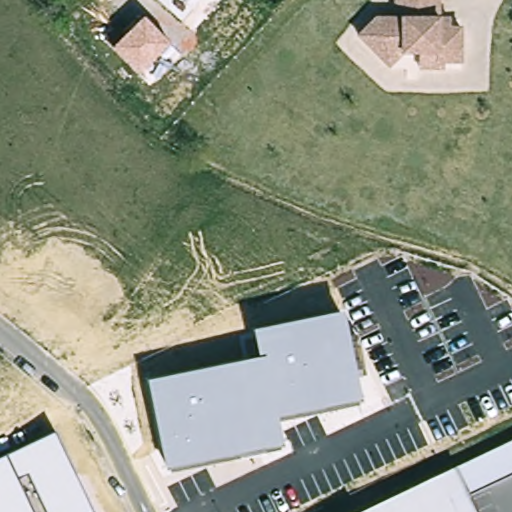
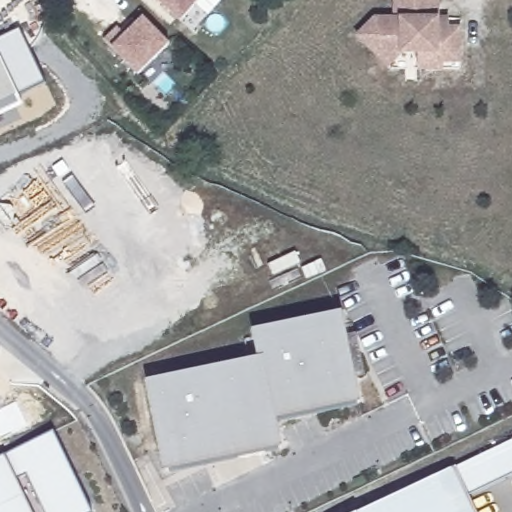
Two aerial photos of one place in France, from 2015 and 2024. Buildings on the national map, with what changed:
new [(183,22),(156,0),(201,0),(183,22)]
unchanged [(354,34),(373,17),(393,19),(394,0),(437,0),(436,11),(446,11),(445,21),(457,22),(455,56),(432,55),(433,46),(397,44),(379,61),(373,55),(354,34)]
unchanged [(170,42),(139,72),(114,48),(144,19),(170,42)]
new [(46,84),(19,97),(23,107),(0,118),(0,39),(20,30),(46,84)]
unchanged [(283,446),(167,470),(148,382),(259,359),(254,332),(344,313),(349,333),(358,336),(368,377),(357,374),(363,403),(279,418),(283,446)]
unchanged [(0,512),(0,460),(5,458),(56,435),(94,512),(0,512)]
unchanged [(467,496),(449,505),(452,512),(361,512),(512,441),(512,475),(467,496)]
unchanged [(475,512),(452,512),(449,505),(467,496),(475,512)]

